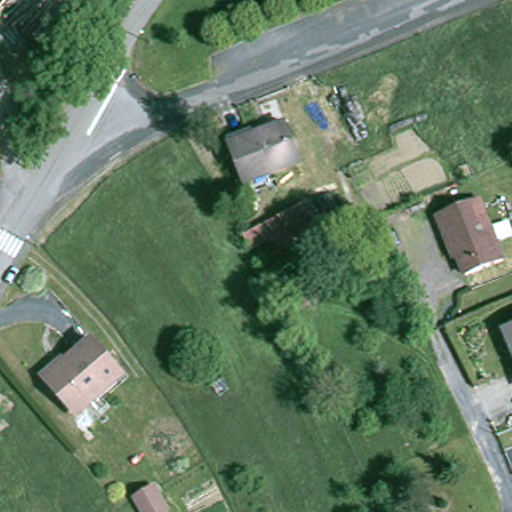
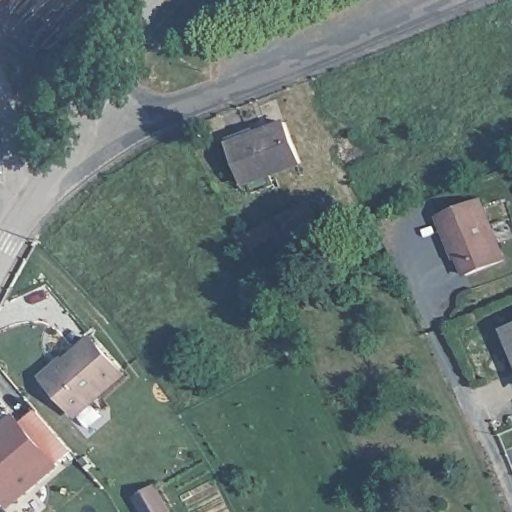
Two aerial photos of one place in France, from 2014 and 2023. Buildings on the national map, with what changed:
unchanged [(286,123),(301,164),(269,175),(273,185),(252,192),(248,182),(243,185),(228,144),(286,123)]
unchanged [(479,200),(503,260),(467,275),(455,248),(452,249),(438,216),(479,200)]
unchanged [(307,204),(320,229),(294,243),(280,217),(307,204)]
unchanged [(267,224),(275,236),(252,249),(245,236),(267,224)]
unchanged [(512,346),(506,332),(512,330),(512,346)]
unchanged [(77,415),(47,380),(93,340),(123,375),(77,415)]
new [(72,453),(57,465),(8,510),(0,500),(0,425),(12,415),(20,422),(35,410),(72,453)]
unchanged [(136,499),(153,488),(167,510),(165,512),(144,512),(136,499)]

